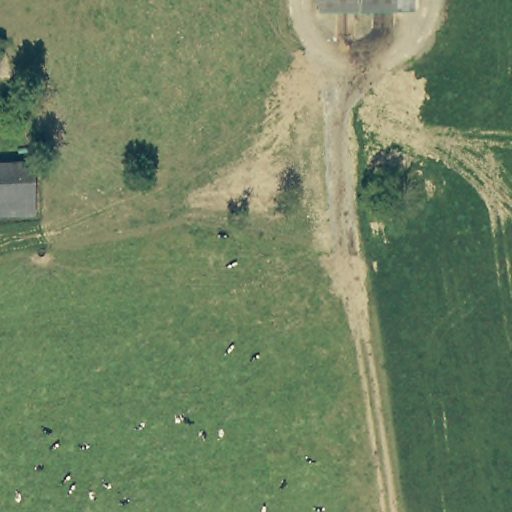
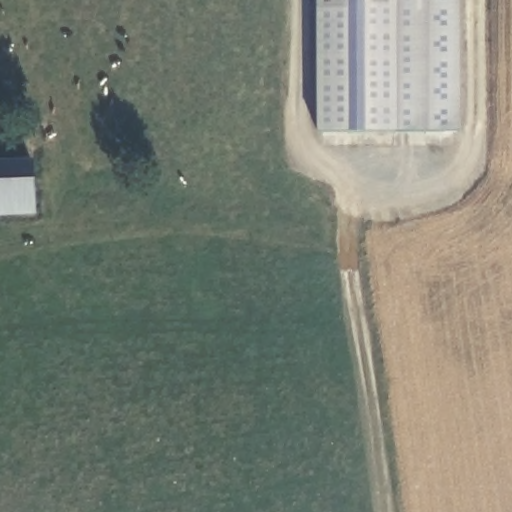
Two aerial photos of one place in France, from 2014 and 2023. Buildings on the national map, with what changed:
unchanged [(315,0),(392,0),(392,4),(315,5),(315,0)]
new [(410,4),(410,0),(458,0),(459,131),(316,133),(315,5),(392,4),(410,4)]
unchanged [(410,0),(410,4),(392,4),(392,0),(410,0)]
demolished [(100,139),(101,125),(143,129),(141,144),(100,139)]
unchanged [(0,215),(0,164),(39,163),(41,214),(0,215)]

